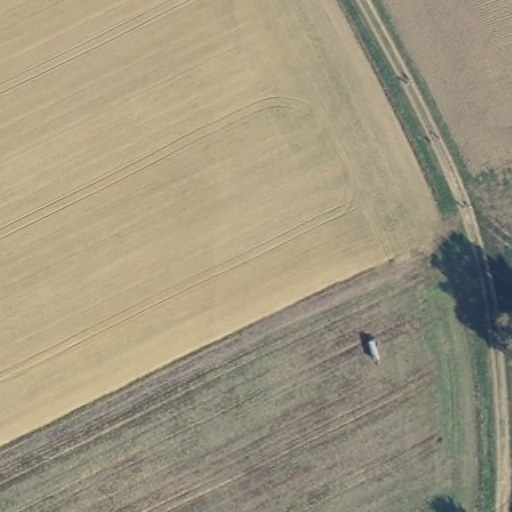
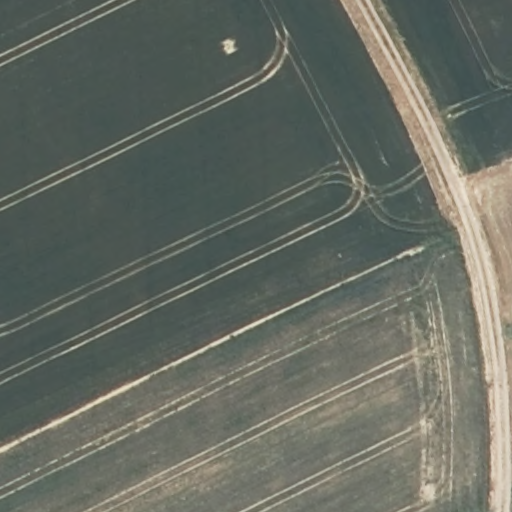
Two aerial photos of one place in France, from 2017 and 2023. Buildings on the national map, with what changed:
[]

